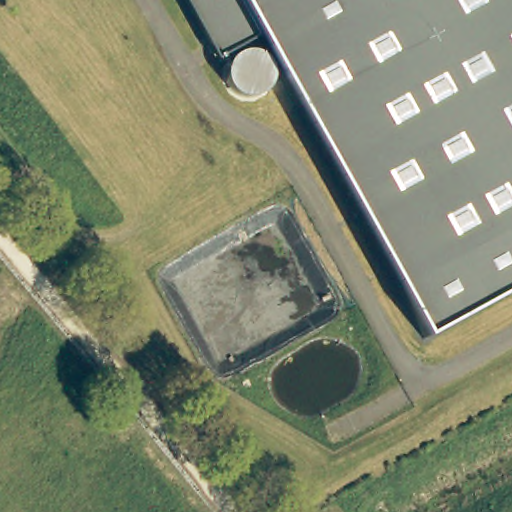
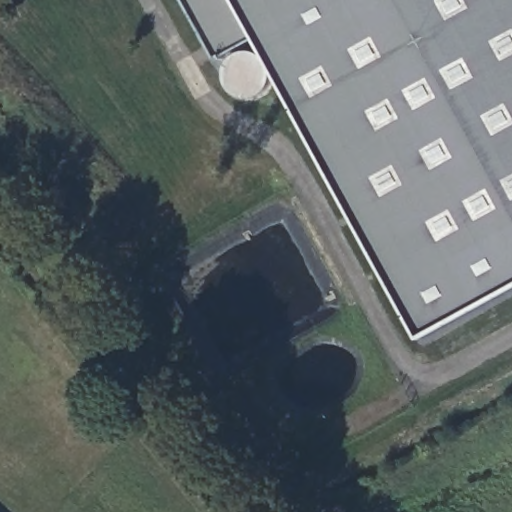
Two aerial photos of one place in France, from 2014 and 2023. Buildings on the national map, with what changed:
unchanged [(512,0),(512,287),(424,336),(259,34),(216,57),(184,0),(512,0)]

